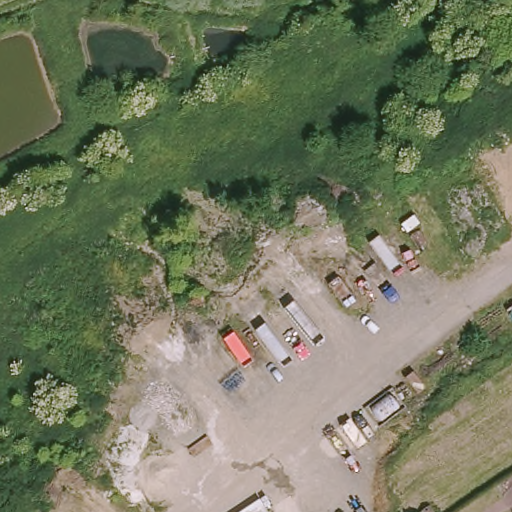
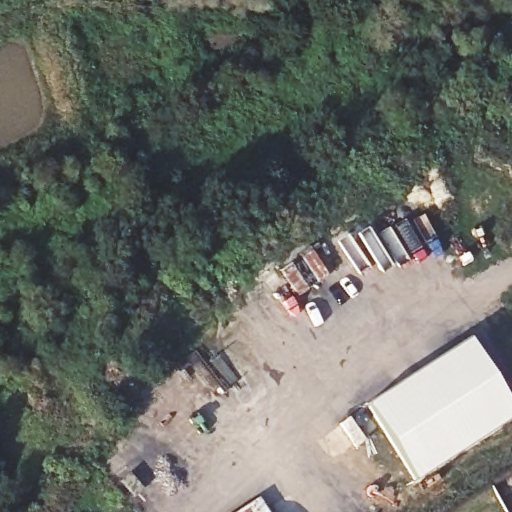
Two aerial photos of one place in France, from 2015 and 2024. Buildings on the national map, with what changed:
new [(512,404),(512,419),(415,481),(367,406),(470,339),(512,404)]
unchanged [(261,501),(268,512),(244,512),(261,501)]

